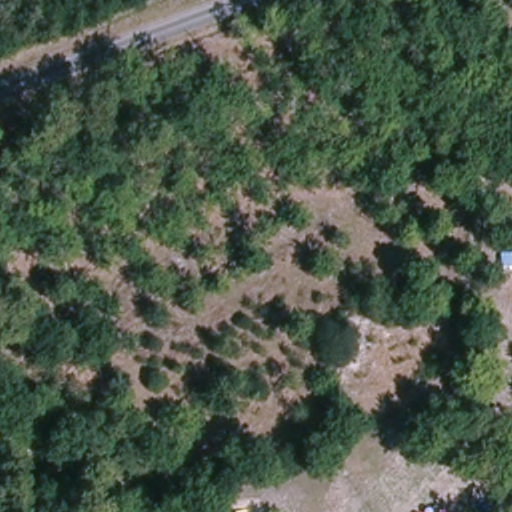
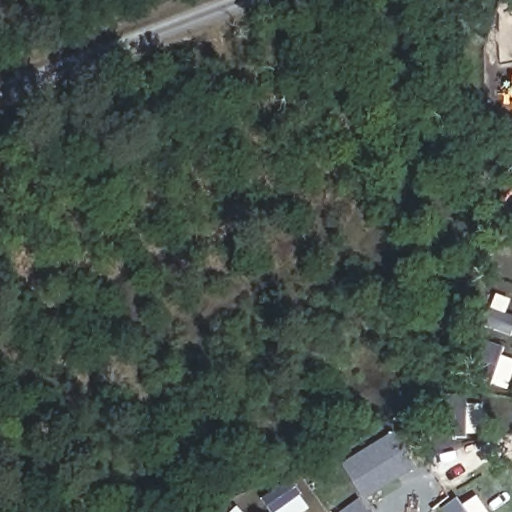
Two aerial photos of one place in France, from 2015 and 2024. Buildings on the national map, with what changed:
new [(366,500),(344,463),(395,432),(417,467),(366,500)]
new [(340,512),(360,499),(369,512),(340,512)]

